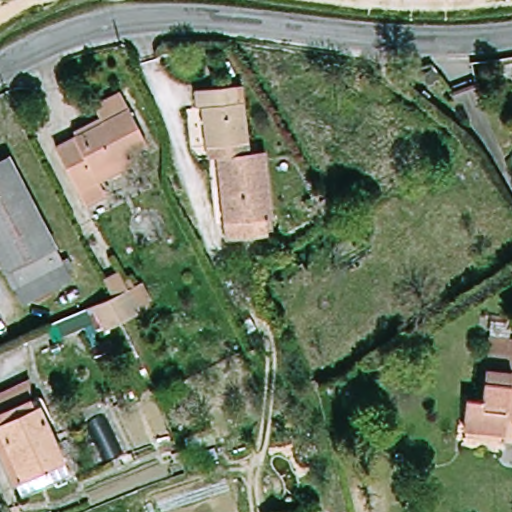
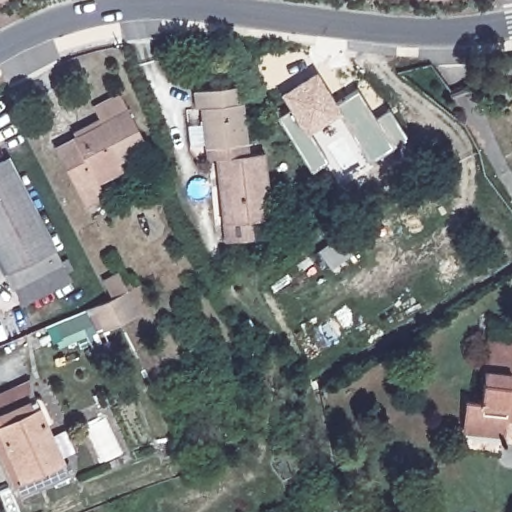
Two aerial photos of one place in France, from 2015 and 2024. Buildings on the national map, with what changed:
new [(369,162),(340,114),(310,133),(328,161),(311,171),(278,116),(290,109),(281,94),(316,71),(337,104),(357,90),(375,119),(390,110),(408,140),(369,162)]
unchanged [(355,85),(344,92),(338,84),(350,76),(355,85)]
unchanged [(262,148),(267,215),(260,215),(262,235),(219,239),(212,152),(203,153),(202,142),(199,104),(192,105),(191,85),(239,81),(244,139),(245,149),(262,148)]
unchanged [(59,149),(106,125),(97,108),(123,95),(148,145),(130,155),(135,164),(100,182),(107,196),(88,206),(59,149)]
unchanged [(70,257),(76,268),(68,272),(72,280),(27,303),(0,252),(0,164),(10,159),(64,261),(70,257)]
unchanged [(111,295),(103,276),(121,267),(126,277),(133,273),(137,281),(140,280),(152,303),(124,318),(105,326),(95,302),(111,295)]
unchanged [(118,350),(101,357),(95,342),(111,335),(118,350)]
unchanged [(465,421),(468,401),(484,403),(490,353),(492,340),(512,342),(512,410),(510,410),(507,427),(506,436),(465,431),(465,421)]
unchanged [(72,470),(47,482),(41,468),(16,480),(0,444),(0,389),(32,375),(33,395),(37,394),(72,470)]

